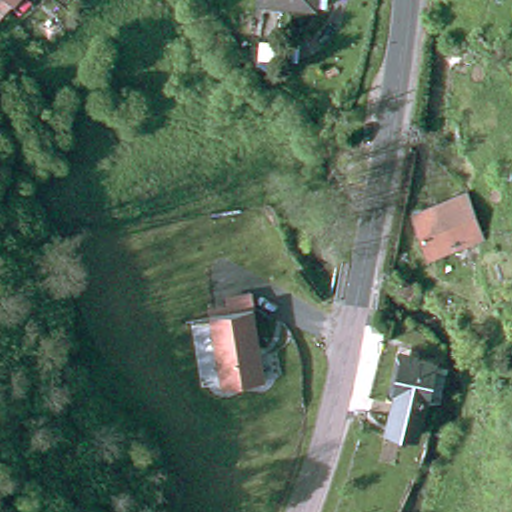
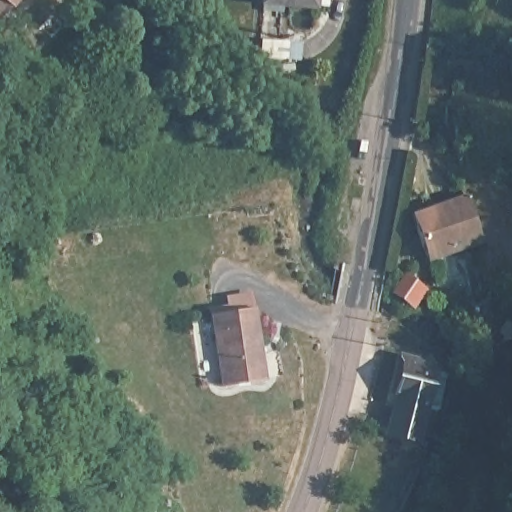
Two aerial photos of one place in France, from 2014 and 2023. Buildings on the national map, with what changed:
unchanged [(0,6),(0,0),(11,0),(7,4),(4,8),(0,6)]
unchanged [(275,0),(315,0),(315,4),(275,0)]
unchanged [(426,256),(411,211),(468,193),(483,237),(426,256)]
unchanged [(220,386),(206,315),(248,307),(262,379),(220,386)]
unchanged [(384,428),(396,353),(425,359),(437,375),(435,386),(420,384),(412,434),(384,428)]

